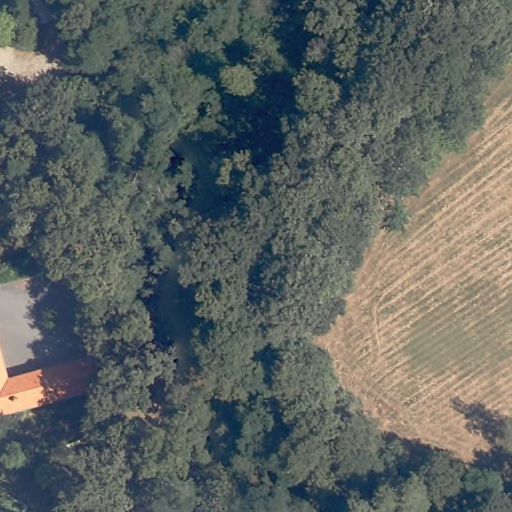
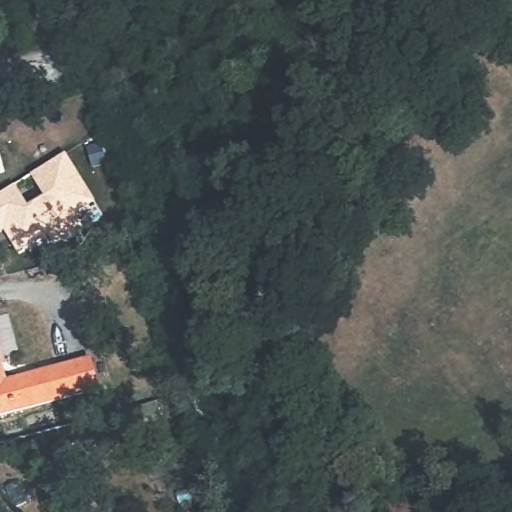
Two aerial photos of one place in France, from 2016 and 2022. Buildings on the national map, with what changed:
unchanged [(42,23),(36,0),(64,0),(69,16),(42,23)]
new [(28,212),(44,202),(30,180),(64,159),(93,206),(71,219),(81,234),(55,250),(48,239),(18,257),(7,240),(12,237),(8,230),(0,236),(0,198),(14,190),(28,212)]
unchanged [(44,378),(53,405),(0,420),(0,353),(11,388),(44,378)]

